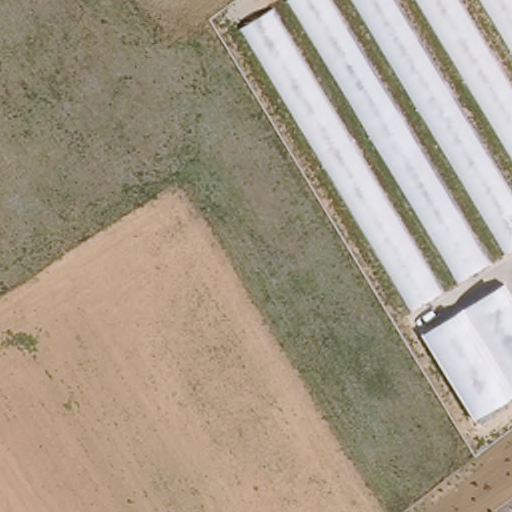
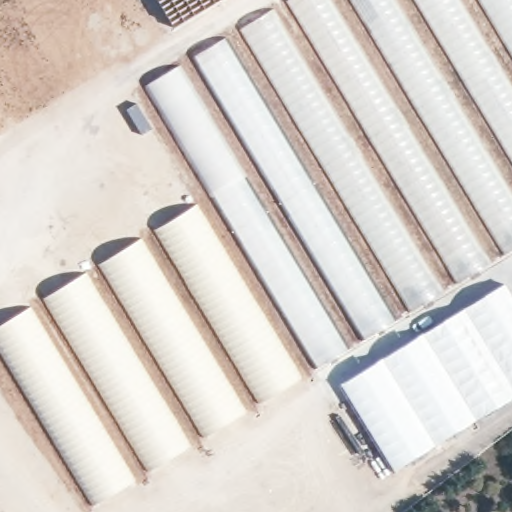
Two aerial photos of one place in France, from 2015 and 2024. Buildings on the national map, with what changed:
unchanged [(330,0),(489,265),(456,282),(287,0),(330,0)]
unchanged [(396,0),(512,193),(512,249),(505,253),(352,0),(396,0)]
unchanged [(460,0),(512,87),(512,159),(416,0),(460,0)]
unchanged [(512,0),(512,53),(480,0),(512,0)]
unchanged [(240,28),(273,9),(442,293),(411,311),(240,28)]
new [(363,340),(193,57),(226,37),(396,320),(363,340)]
new [(316,370),(144,86),(179,65),(351,348),(316,370)]
new [(259,403),(154,230),(197,204),(302,377),(259,403)]
new [(203,437),(99,265),(142,239),(246,411),(203,437)]
new [(148,471),(43,299),(85,273),(190,445),(148,471)]
unchanged [(504,284),(512,297),(512,398),(474,420),(421,334),(504,284)]
new [(94,505),(0,351),(0,326),(32,307),(137,479),(94,505)]
new [(474,420),(393,471),(340,385),(421,334),(474,420)]

